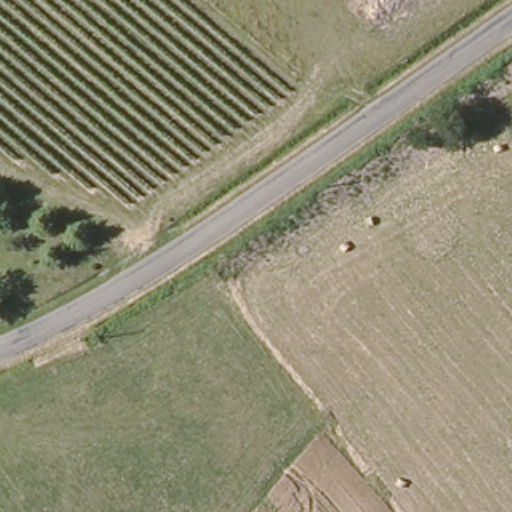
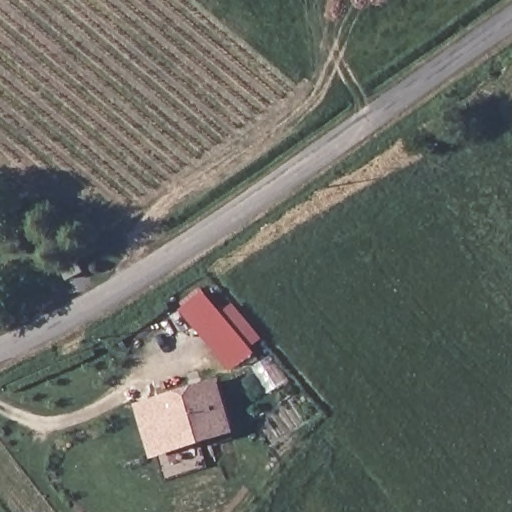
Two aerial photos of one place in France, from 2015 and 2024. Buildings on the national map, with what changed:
new [(233,371),(227,375),(199,339),(204,335),(184,309),(204,291),(255,353),(233,371)]
new [(236,432),(151,457),(135,404),(221,378),(236,432)]

